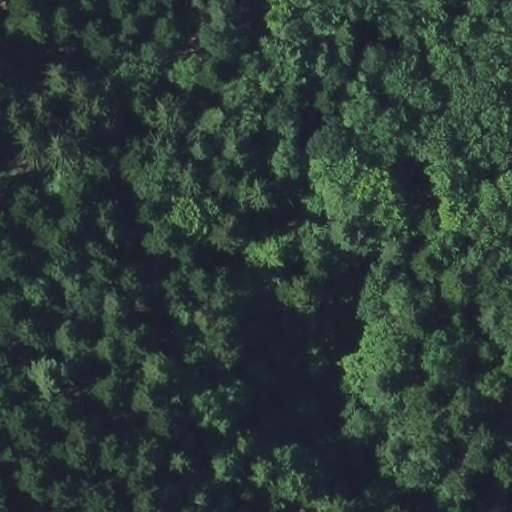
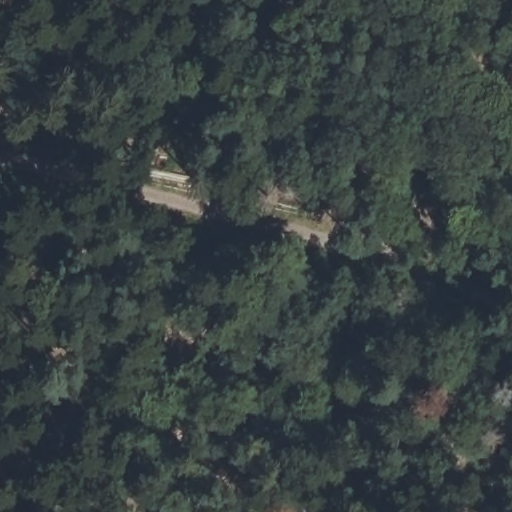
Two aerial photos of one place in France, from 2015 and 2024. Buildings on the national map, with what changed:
unchanged [(290,314),(297,348),(245,357),(239,325),(290,314)]

